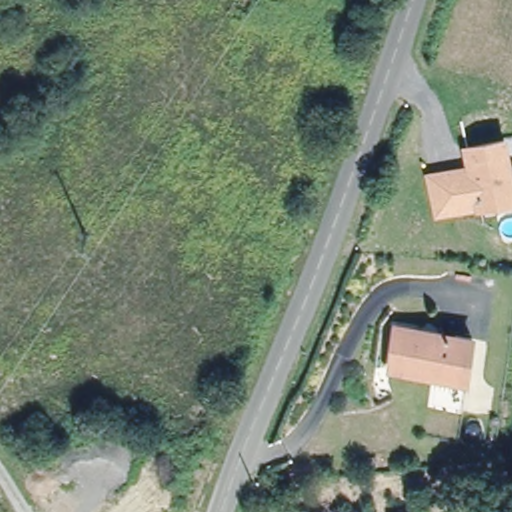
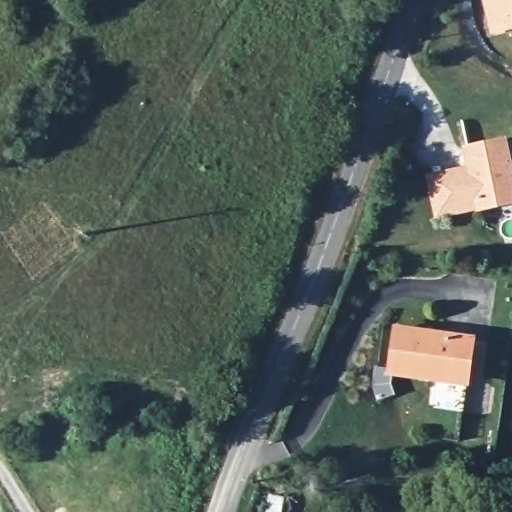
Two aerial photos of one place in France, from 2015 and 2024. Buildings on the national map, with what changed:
new [(492,33),(483,0),(512,0),(512,29),(492,33)]
unchanged [(512,149),(512,204),(437,220),(427,173),(468,165),(464,145),(509,135),(512,149)]
unchanged [(424,432),(433,372),(391,366),(397,324),(461,333),(474,335),(468,376),(460,436),(424,432)]
unchanged [(283,512),(266,512),(268,495),(285,497),(283,512)]

